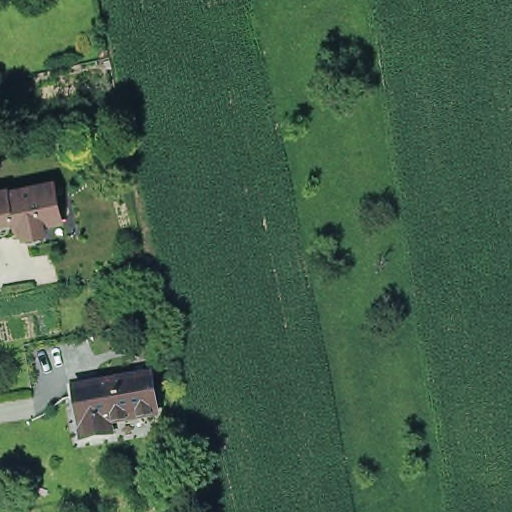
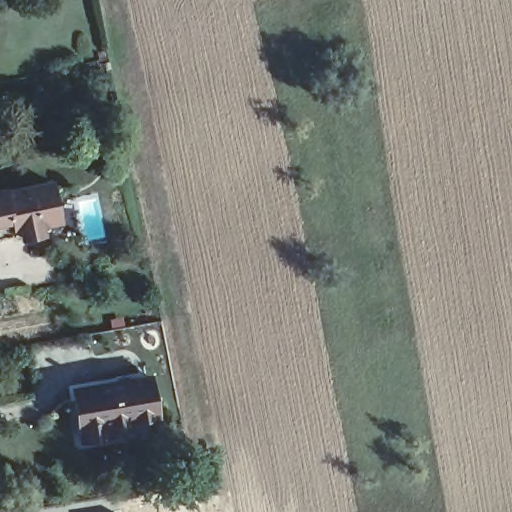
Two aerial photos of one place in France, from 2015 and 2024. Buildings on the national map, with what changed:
unchanged [(8,185),(9,188),(55,179),(62,217),(42,221),(45,230),(25,234),(23,225),(17,226),(18,232),(17,232),(17,230),(0,234),(0,187),(8,185)]
unchanged [(110,423),(112,435),(83,440),(75,390),(150,377),(157,415),(110,423)]

